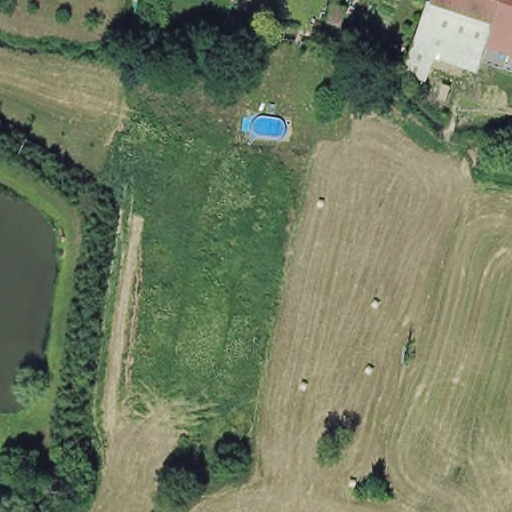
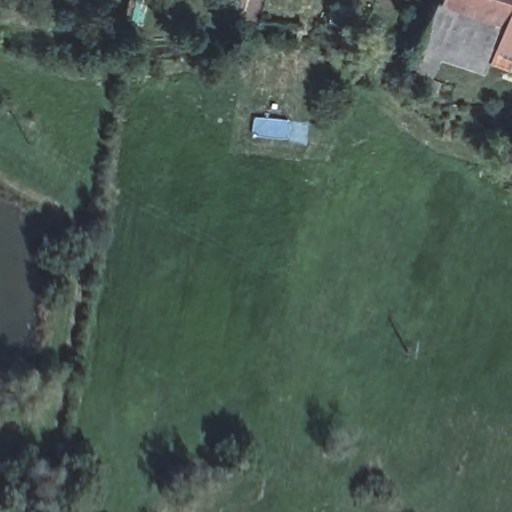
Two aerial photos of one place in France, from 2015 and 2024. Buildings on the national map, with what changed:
unchanged [(499,22),(484,59),(417,35),(429,0),(434,0),(434,1),(499,22)]
unchanged [(434,0),(512,0),(512,27),(499,22),(434,1),(434,0)]
unchanged [(327,21),(333,2),(346,6),(340,25),(327,21)]
unchanged [(512,27),(512,68),(484,59),(499,22),(512,27)]

